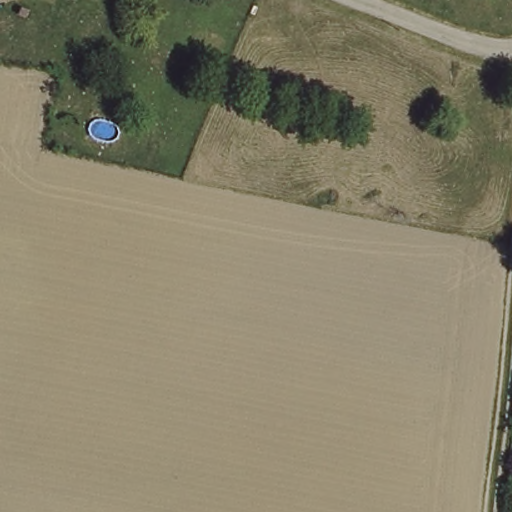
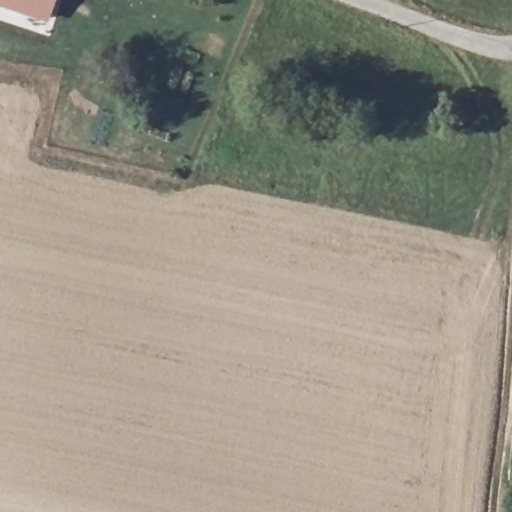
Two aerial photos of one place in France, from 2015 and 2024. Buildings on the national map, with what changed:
new [(40,27),(0,10),(0,0),(50,0),(40,27)]

